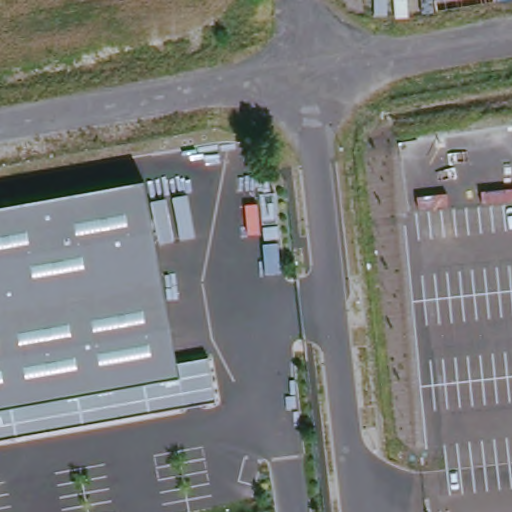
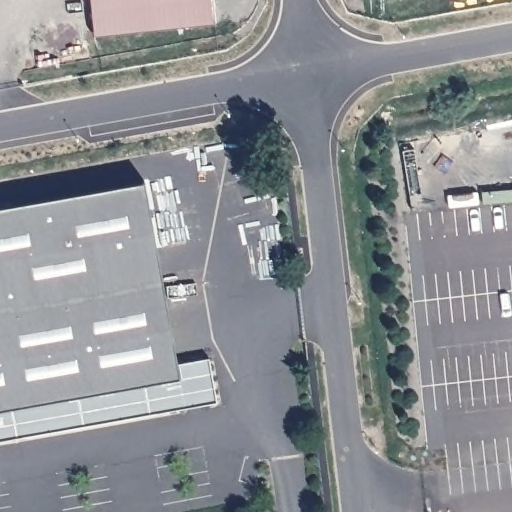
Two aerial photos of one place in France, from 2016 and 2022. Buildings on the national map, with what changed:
new [(102,31),(98,0),(218,0),(220,16),(102,31)]
unchanged [(180,365),(210,360),(217,405),(0,443),(0,210),(146,183),(180,365)]

